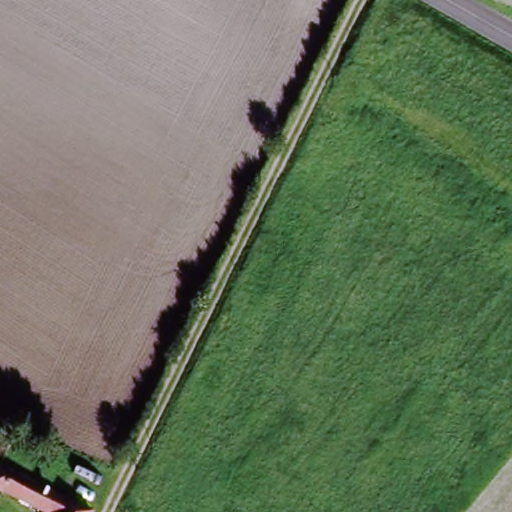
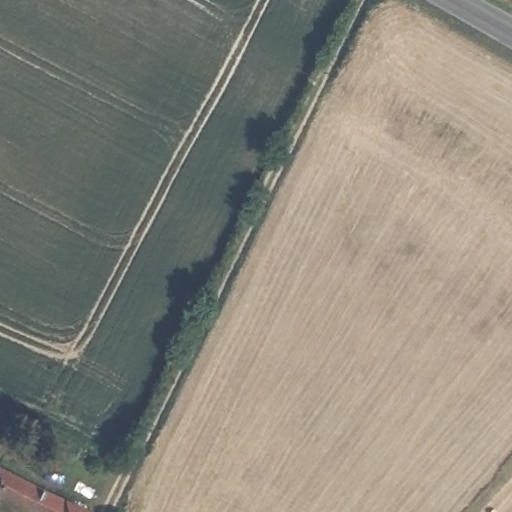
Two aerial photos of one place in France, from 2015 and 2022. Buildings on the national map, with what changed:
unchanged [(79,512),(33,512),(0,495),(0,473),(79,512)]

